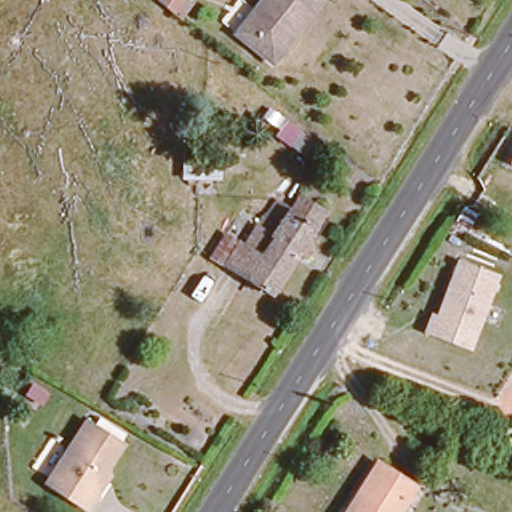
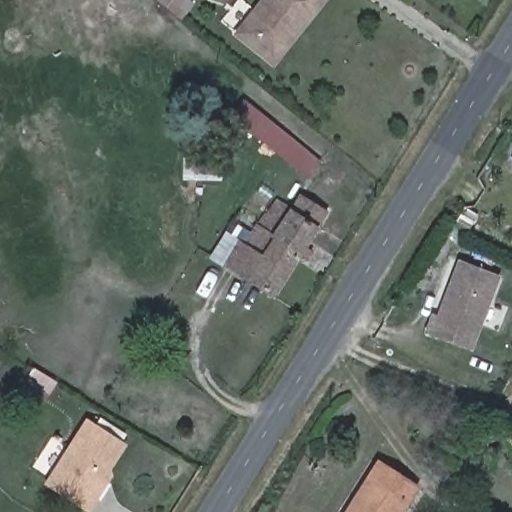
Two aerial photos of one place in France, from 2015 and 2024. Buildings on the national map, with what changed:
unchanged [(177,2),(166,16),(165,15),(150,3),(153,0),(175,0),(177,2)]
unchanged [(325,1),(303,27),(295,36),(272,63),(236,32),(264,0),(324,0),(325,1)]
new [(245,98),(319,161),(306,176),(230,114),(245,98)]
unchanged [(512,159),(512,161),(511,161),(512,159)]
unchanged [(241,245),(257,220),(260,221),(273,199),(277,202),(283,192),(292,198),(297,191),(323,209),(269,296),(222,267),(225,261),(236,242),(241,245)]
unchanged [(472,348),(426,331),(430,314),(438,316),(458,260),(501,275),(472,348)]
unchanged [(84,415),(126,442),(108,470),(113,474),(87,512),(40,481),(84,415)]
unchanged [(399,512),(348,512),(378,458),(416,480),(399,512)]

